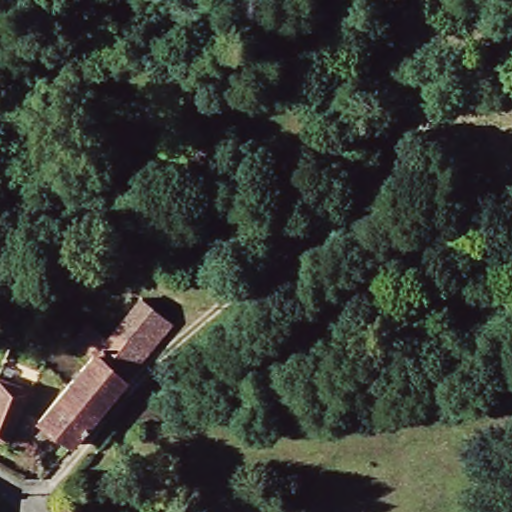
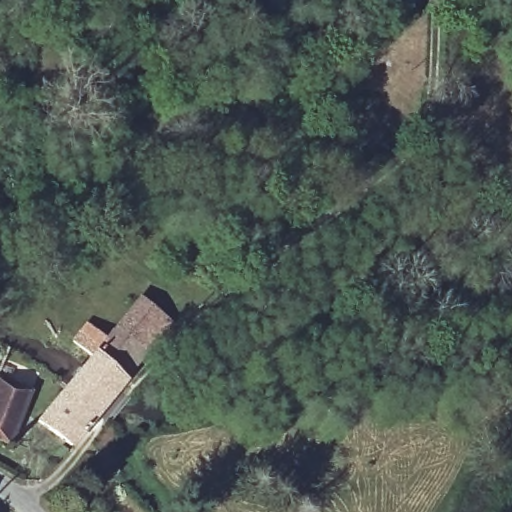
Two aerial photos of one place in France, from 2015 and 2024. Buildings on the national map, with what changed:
unchanged [(164,319),(140,350),(110,327),(132,295),(164,319)]
unchanged [(145,354),(120,375),(103,398),(68,440),(39,421),(66,380),(78,361),(82,352),(69,342),(81,328),(97,340),(110,327),(140,350),(145,354)]
unchanged [(27,389),(0,447),(0,377),(27,389)]

